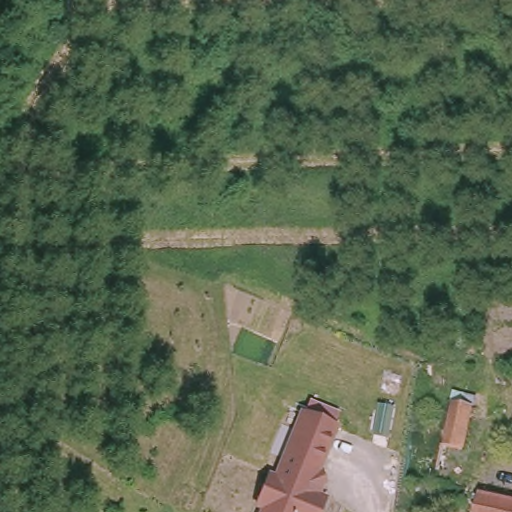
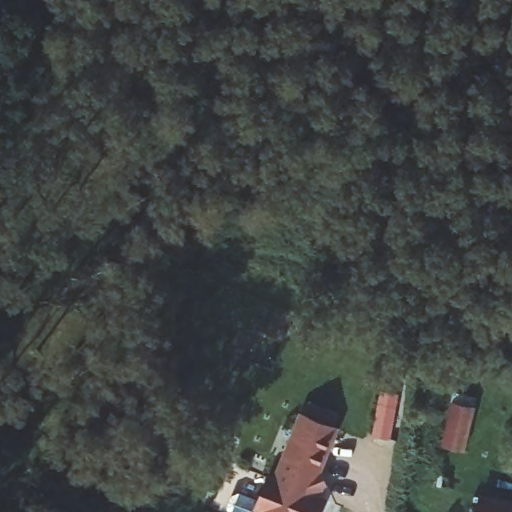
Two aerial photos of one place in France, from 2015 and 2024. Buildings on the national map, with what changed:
unchanged [(473,403),(462,456),(441,451),(452,400),(473,403)]
unchanged [(319,481),(314,492),(322,496),(315,512),(258,512),(261,505),(254,503),(266,473),(272,476),(294,422),(300,410),(333,423),(330,430),(314,470),(319,468),(324,479),(319,481)]
unchanged [(512,498),(512,512),(480,512),(485,492),(512,498)]

